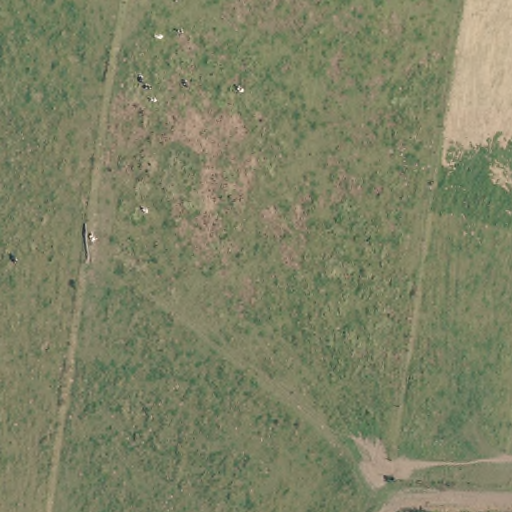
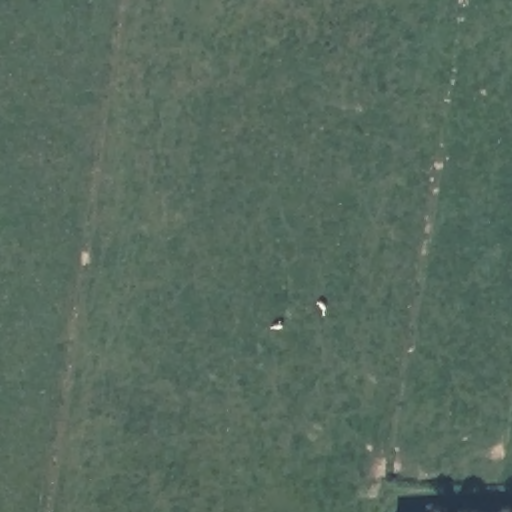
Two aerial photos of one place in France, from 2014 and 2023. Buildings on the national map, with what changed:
[]

